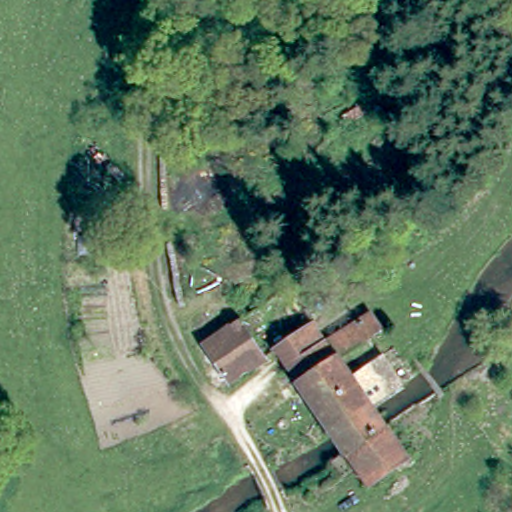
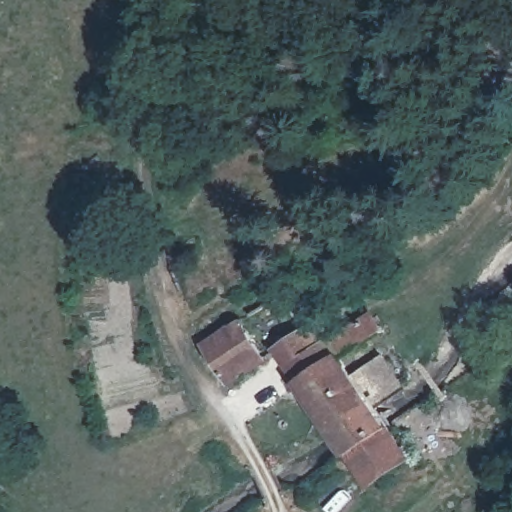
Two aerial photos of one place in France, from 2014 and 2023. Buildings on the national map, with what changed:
unchanged [(330,337),(373,308),(384,325),(337,355),(349,372),(396,342),(414,371),(374,398),(388,421),(409,454),(367,481),(345,450),(330,426),(288,363),(330,337)]
unchanged [(264,357),(229,381),(211,351),(204,340),(239,317),(245,327),(264,357)]
unchanged [(276,345),(316,317),(330,337),(288,363),(276,345)]

